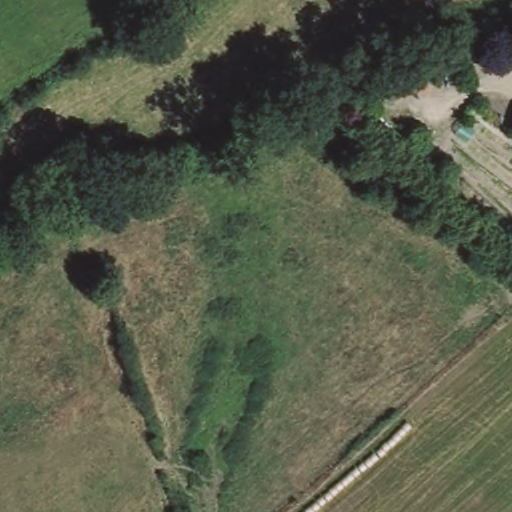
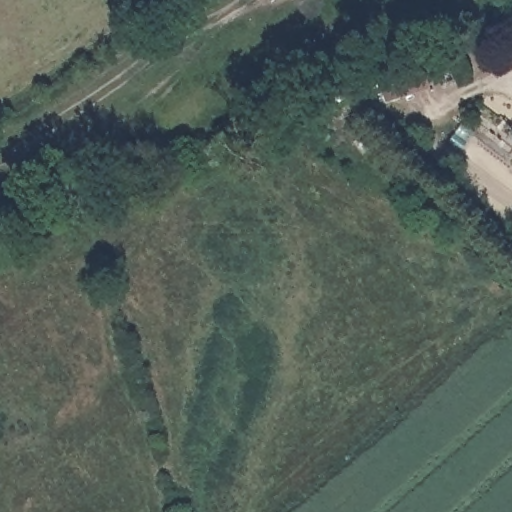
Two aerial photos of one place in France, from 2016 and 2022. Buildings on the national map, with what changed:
unchanged [(410,105),(407,98),(403,91),(393,73),(421,59),(430,78),(434,86),(437,92),(410,105)]

